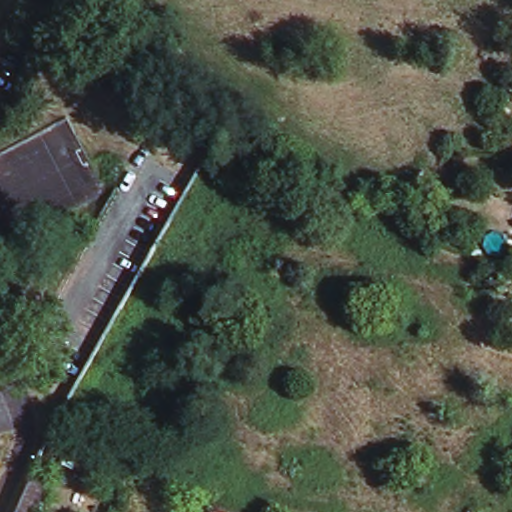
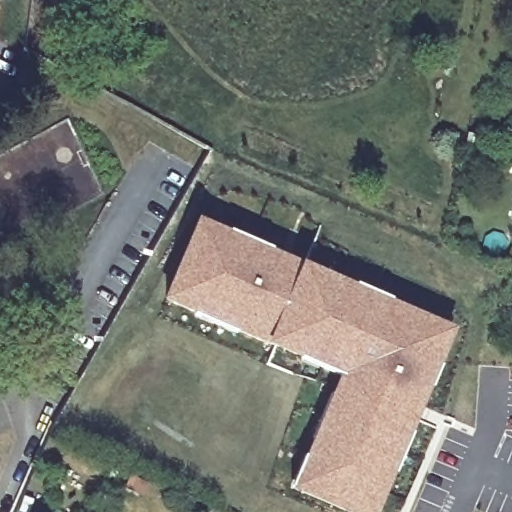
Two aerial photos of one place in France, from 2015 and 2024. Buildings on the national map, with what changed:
new [(267,342),(163,300),(196,219),(300,262),(454,329),(378,512),(346,512),(289,489),(339,376),(267,342)]
unchanged [(37,512),(21,512),(31,487),(35,478),(50,485),(37,512)]

